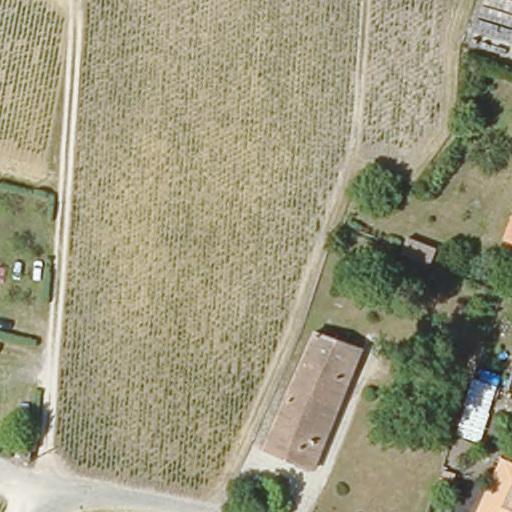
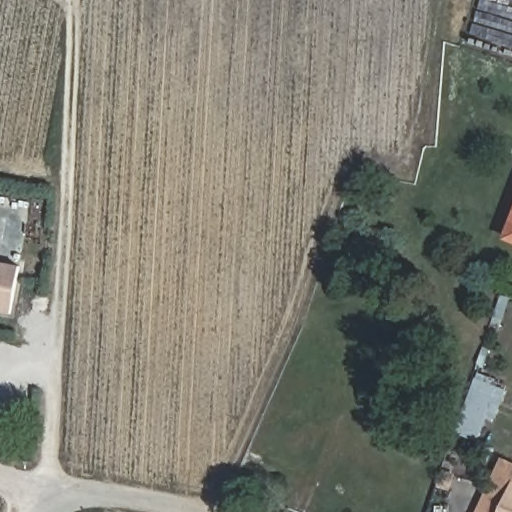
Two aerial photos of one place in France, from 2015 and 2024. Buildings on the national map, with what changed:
unchanged [(512,223),(512,238),(506,236),(508,231),(512,223)]
unchanged [(406,239),(434,250),(428,264),(400,254),(406,239)]
new [(11,309),(0,307),(0,261),(15,264),(11,309)]
demolished [(307,463),(260,445),(314,331),(362,348),(307,463)]
unchanged [(500,457),(512,462),(512,493),(511,493),(502,512),(475,512),(500,457)]
unchanged [(511,493),(512,493),(512,512),(502,512),(511,493)]

